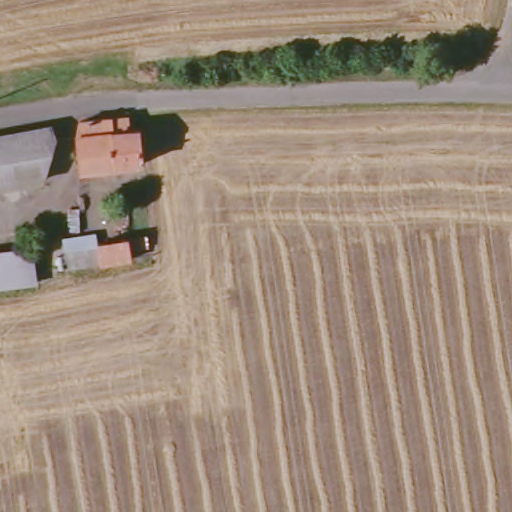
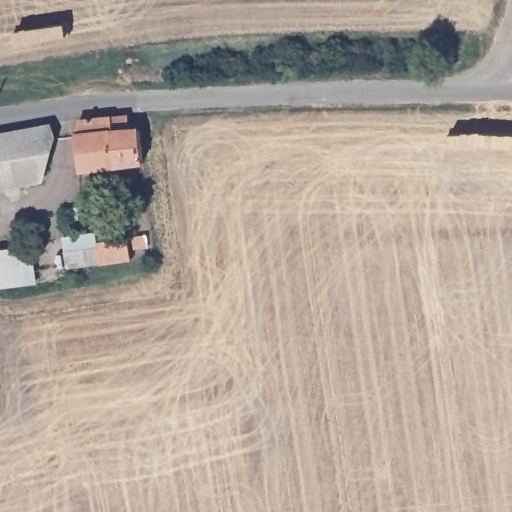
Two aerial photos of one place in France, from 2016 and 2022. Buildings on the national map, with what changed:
unchanged [(129,124),(131,136),(140,136),(142,166),(78,178),(73,144),(76,131),(129,124)]
unchanged [(51,126),(55,142),(41,180),(0,188),(0,135),(51,126)]
unchanged [(138,261),(71,268),(69,240),(102,236),(105,243),(135,238),(138,261)]
unchanged [(0,285),(0,251),(30,246),(35,281),(0,285)]

